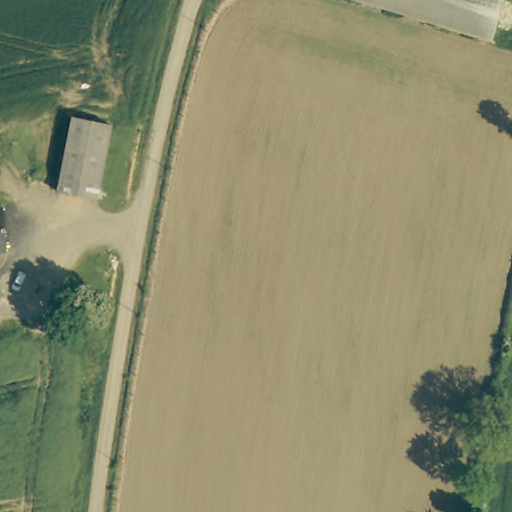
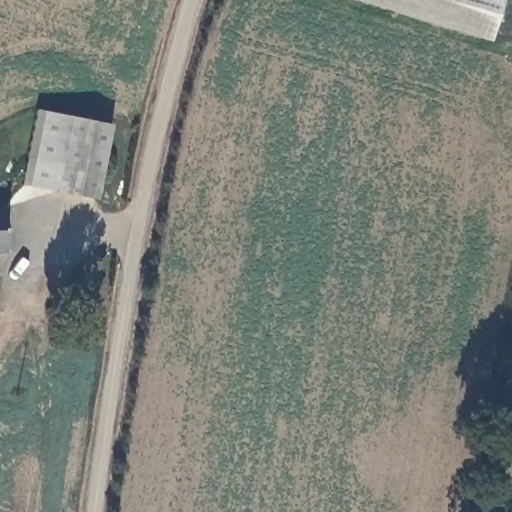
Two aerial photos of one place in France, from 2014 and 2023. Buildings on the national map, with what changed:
unchanged [(360,0),(503,0),(490,44),(360,0)]
new [(55,193),(21,187),(34,111),(67,118),(55,193)]
unchanged [(95,199),(55,193),(67,118),(107,124),(95,199)]
unchanged [(4,251),(0,251),(0,213),(4,251)]

